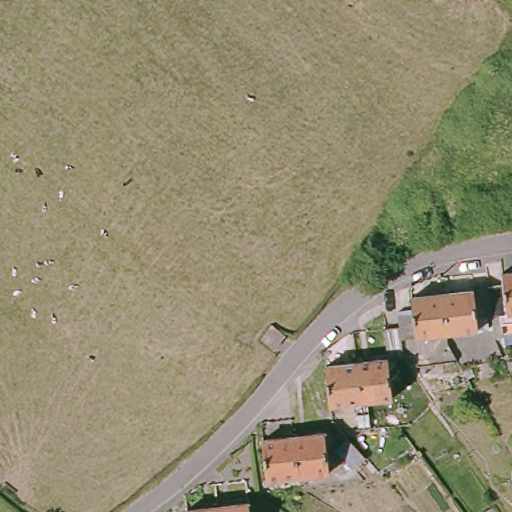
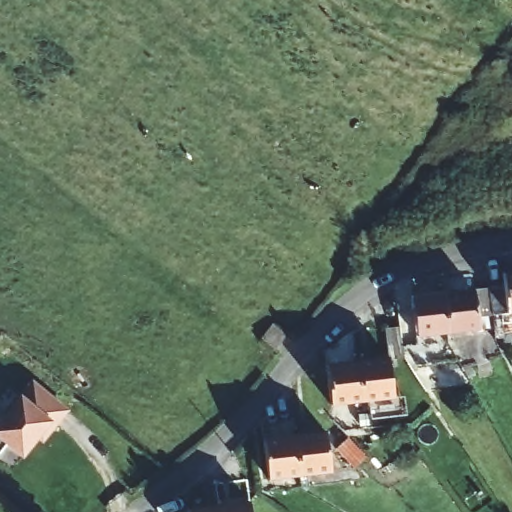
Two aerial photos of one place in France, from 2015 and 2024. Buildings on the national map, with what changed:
unchanged [(485,281),(501,278),(501,264),(512,263),(512,305),(488,307),(485,281)]
unchanged [(437,291),(468,288),(469,327),(439,330),(437,291)]
unchanged [(393,334),(392,322),(391,306),(407,305),(406,293),(437,291),(439,330),(393,334)]
unchanged [(354,358),(387,356),(386,322),(392,322),(393,334),(394,352),(393,353),(397,396),(357,399),(354,358)]
unchanged [(357,399),(326,402),(323,361),(354,358),(357,399)]
new [(35,437),(20,455),(7,443),(0,451),(0,420),(21,394),(31,383),(65,412),(43,441),(35,437)]
unchanged [(291,433),(323,431),(325,470),(293,472),(291,433)]
unchanged [(293,472),(261,476),(259,436),(291,433),(293,472)]
unchanged [(389,463),(374,474),(360,454),(375,443),(389,463)]
unchanged [(247,512),(218,512),(218,504),(246,501),(247,512)]
unchanged [(218,504),(218,512),(185,512),(184,507),(218,504)]

